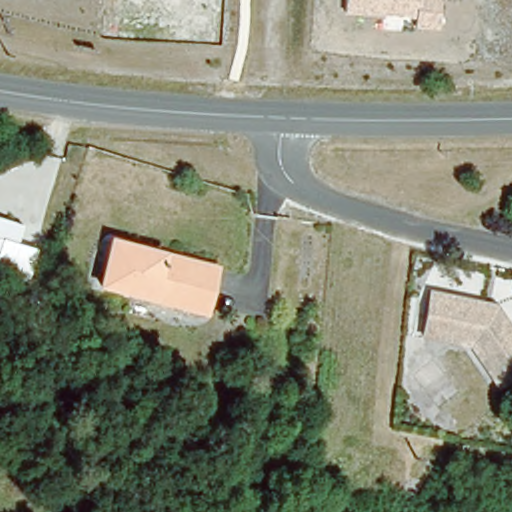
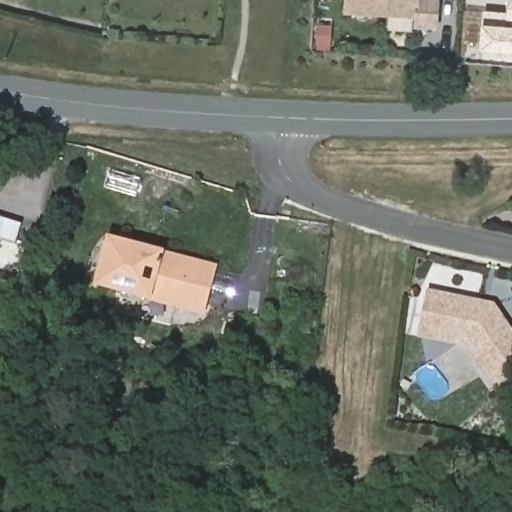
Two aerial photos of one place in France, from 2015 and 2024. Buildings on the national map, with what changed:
unchanged [(441,29),(416,28),(417,17),(345,16),(345,0),(441,0),(441,29)]
new [(508,0),(512,0),(512,30),(506,29),(508,0)]
new [(483,11),(507,13),(506,29),(512,30),(512,52),(480,49),(482,23),(483,11)]
unchanged [(15,247),(1,243),(0,245),(0,216),(22,222),(15,247)]
unchanged [(188,260),(186,266),(212,272),(206,301),(179,296),(178,302),(98,284),(104,255),(107,241),(118,243),(188,260)]
unchanged [(466,343),(418,336),(425,295),(475,303),(490,304),(512,335),(512,355),(507,359),(512,366),(512,371),(494,382),(466,343)]

